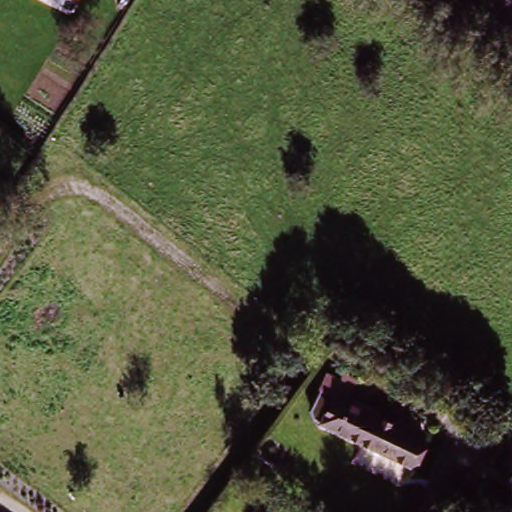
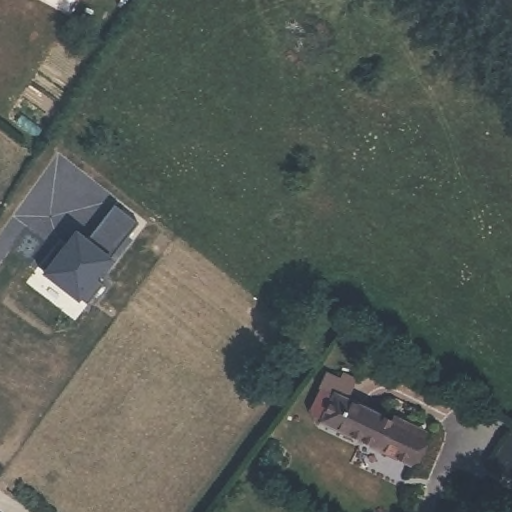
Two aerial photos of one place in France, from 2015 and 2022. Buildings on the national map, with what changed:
unchanged [(77,0),(75,4),(66,0),(77,0)]
new [(139,224),(110,259),(95,280),(104,285),(87,307),(79,302),(40,273),(77,229),(89,238),(115,206),(139,224)]
unchanged [(312,424),(335,389),(429,436),(414,472),(312,424)]
unchanged [(483,460),(477,456),(500,430),(508,421),(512,424),(512,482),(507,479),(483,460)]

